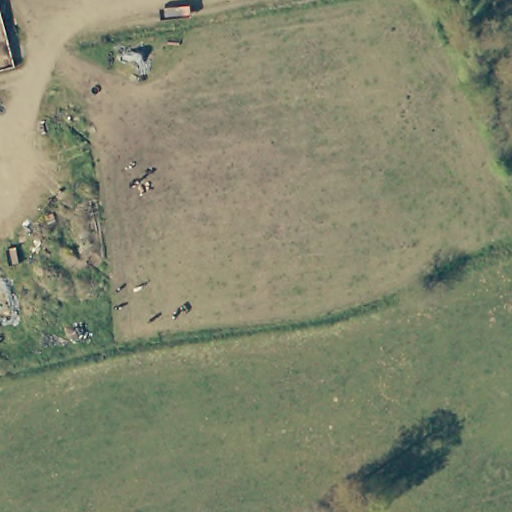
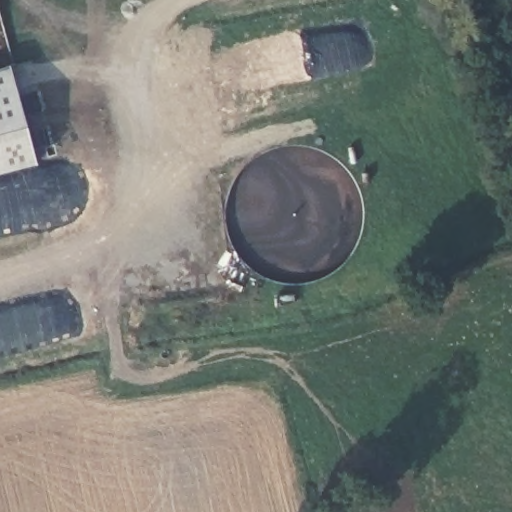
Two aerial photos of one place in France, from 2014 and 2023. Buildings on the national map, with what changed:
new [(9,67),(35,166),(0,175),(0,70),(9,67)]

